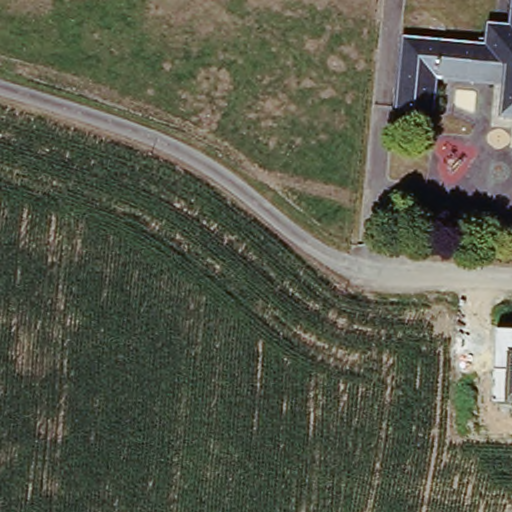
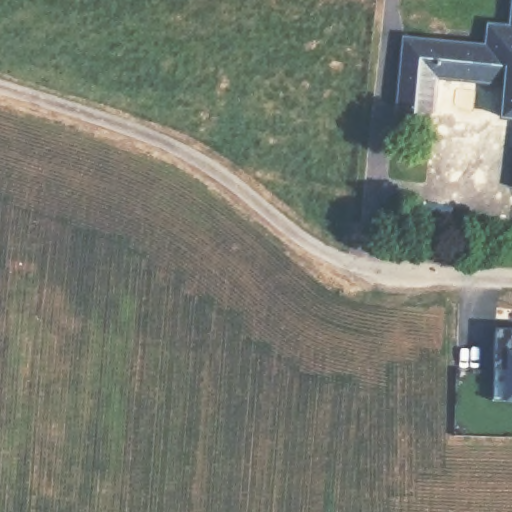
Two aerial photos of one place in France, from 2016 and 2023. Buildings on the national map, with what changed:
unchanged [(510,86),(441,84),(439,114),(403,111),(407,42),(487,47),(488,23),(509,24),(510,0),(512,0),(512,118),(508,118),(510,86)]
unchanged [(512,403),(493,402),(497,329),(512,330),(512,403)]

